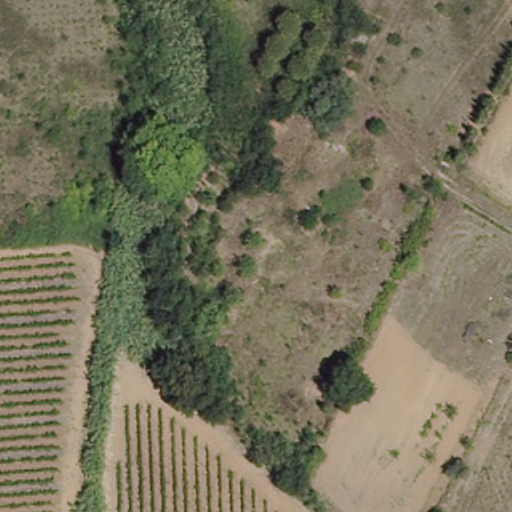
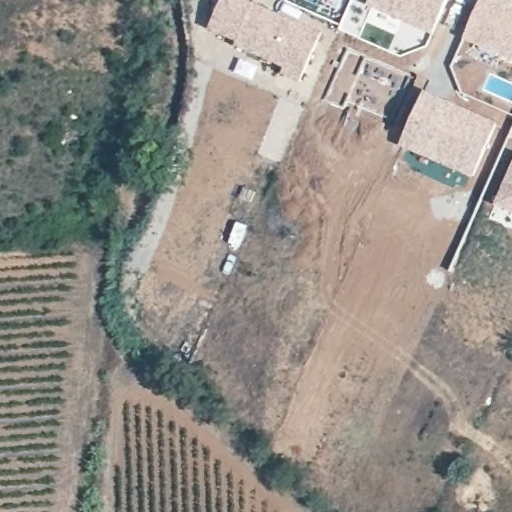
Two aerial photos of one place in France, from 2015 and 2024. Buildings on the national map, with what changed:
new [(251,0),(278,11),(322,28),(299,82),(281,73),(283,68),(247,50),(209,28),(221,0),(251,0)]
new [(446,0),(431,36),(427,34),(399,21),(366,6),(368,0),(446,0)]
new [(511,0),(512,1),(512,61),(462,39),(479,0),(511,0)]
new [(423,89),(496,123),(473,177),(398,145),(423,89)]
new [(512,161),(512,212),(493,204),(512,161)]

